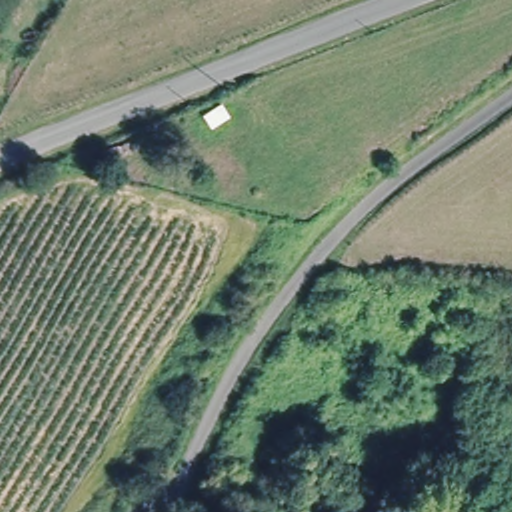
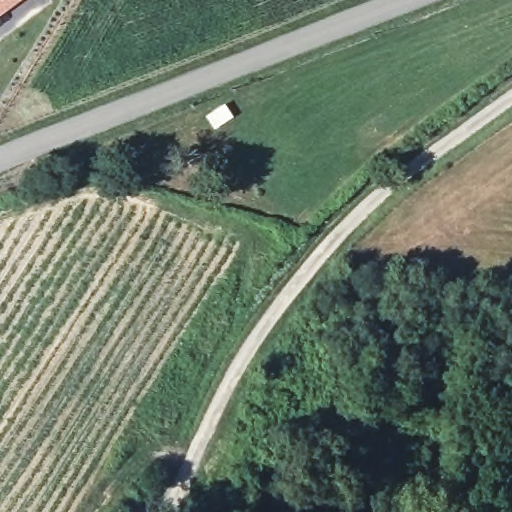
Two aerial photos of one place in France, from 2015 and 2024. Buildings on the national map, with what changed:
new [(19,0),(0,14),(0,0),(19,0)]

